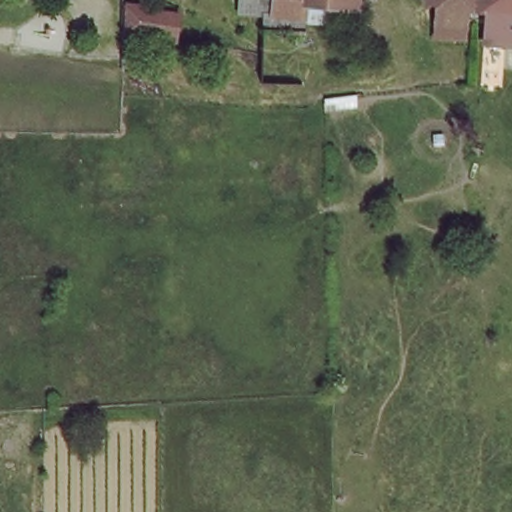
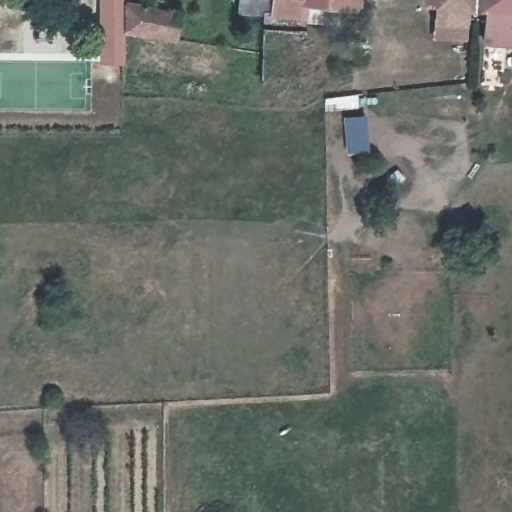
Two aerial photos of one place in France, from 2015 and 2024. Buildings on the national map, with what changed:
unchanged [(329,5),(328,18),(308,17),(307,33),(264,27),(264,11),(241,10),(242,0),(344,0),(344,6),(329,5)]
unchanged [(467,6),(436,5),(436,0),(471,0),(471,8),(467,8),(467,6)]
unchanged [(471,8),(471,0),(512,0),(512,11),(486,9),(471,8)]
unchanged [(124,5),(144,7),(179,14),(175,40),(124,32),(124,12),(124,5)]
unchanged [(467,6),(467,8),(464,57),(430,56),(436,5),(467,6)]
unchanged [(484,42),(486,9),(512,11),(512,43),(484,42)]

